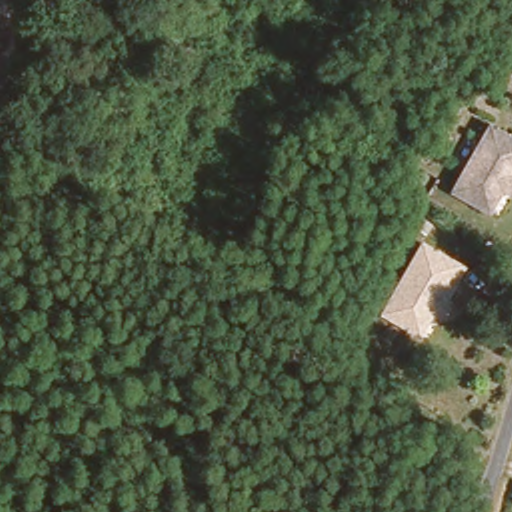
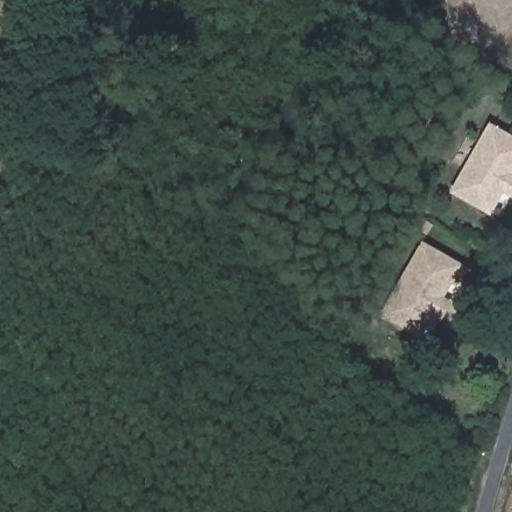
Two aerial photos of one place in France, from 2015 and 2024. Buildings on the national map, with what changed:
unchanged [(503,189),(494,185),(482,208),(444,188),(482,122),(512,139),(512,151),(502,170),(511,175),(503,189)]
unchanged [(432,314),(424,310),(411,333),(374,311),(414,242),(456,266),(448,281),(443,278),(432,295),(441,300),(432,314)]

